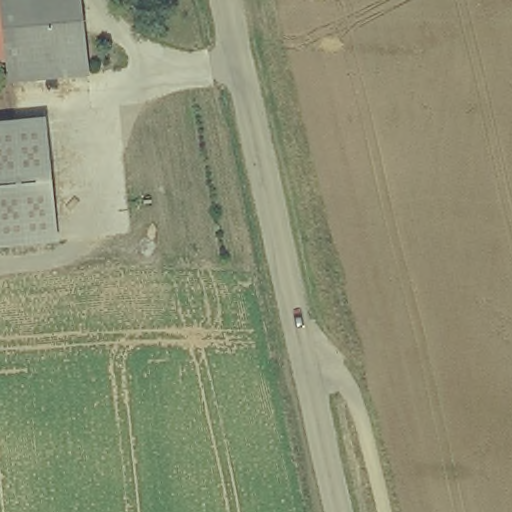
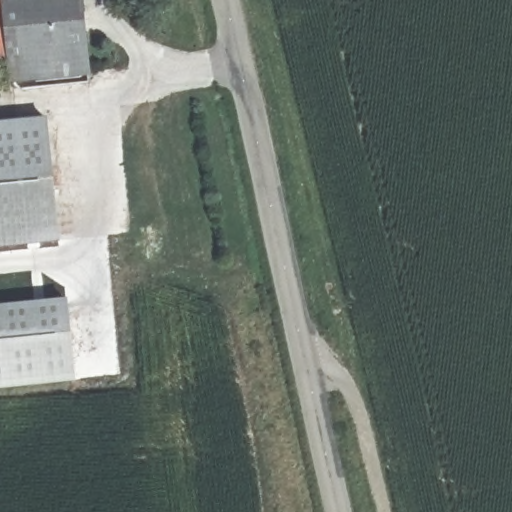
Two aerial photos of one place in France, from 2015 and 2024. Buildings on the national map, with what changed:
unchanged [(10,77),(7,56),(0,57),(0,0),(78,0),(85,69),(10,77)]
unchanged [(0,127),(41,122),(53,245),(0,251),(0,127)]
new [(0,389),(0,306),(68,299),(75,381),(0,389)]

